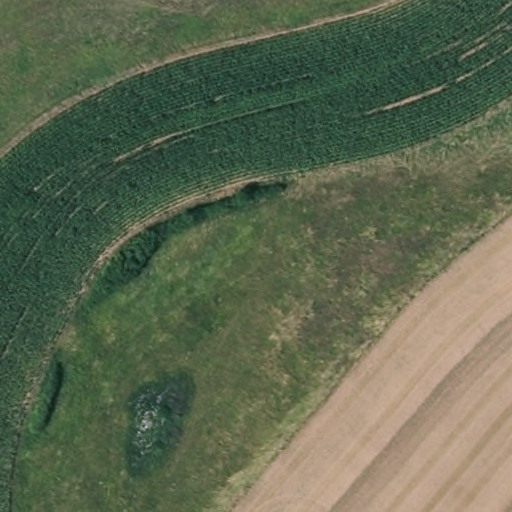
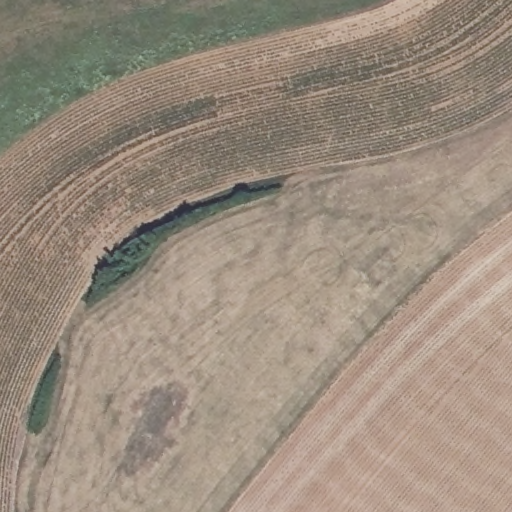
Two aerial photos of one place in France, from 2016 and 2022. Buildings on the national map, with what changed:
[]

